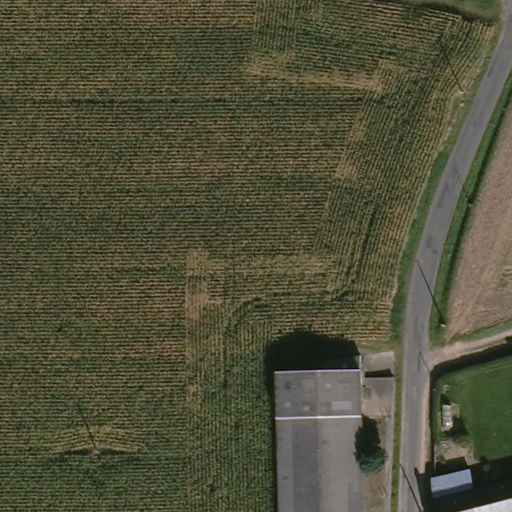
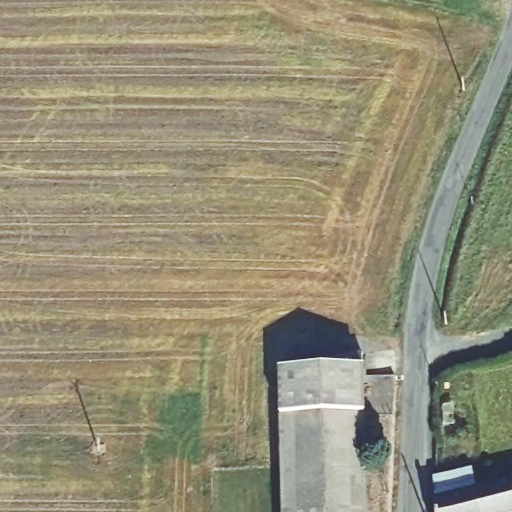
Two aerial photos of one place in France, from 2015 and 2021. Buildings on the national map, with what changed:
unchanged [(273,455),(272,416),(287,415),(286,370),(335,368),(334,358),(367,357),(372,512),(289,512),(287,454),(273,455)]
unchanged [(482,512),(437,512),(439,472),(474,469),(478,487),(482,512)]
unchanged [(482,512),(478,487),(512,479),(512,512),(482,512)]

